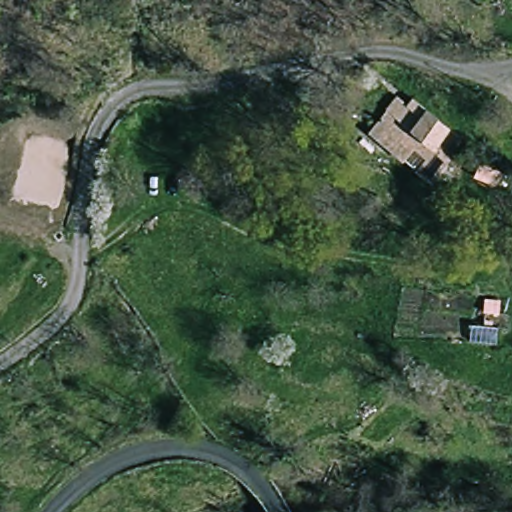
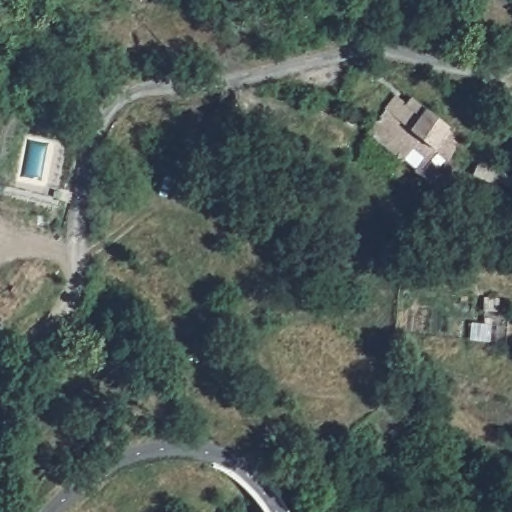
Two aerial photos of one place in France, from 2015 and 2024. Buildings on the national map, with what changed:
unchanged [(394,97),(410,105),(419,97),(453,129),(441,142),(458,158),(442,184),(418,172),(426,160),(409,149),(400,162),(369,132),(394,97)]

